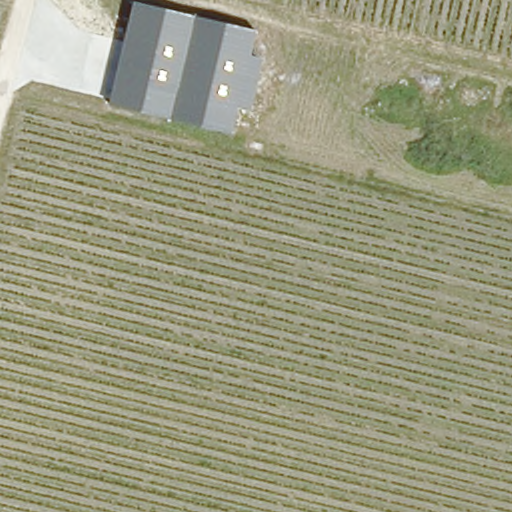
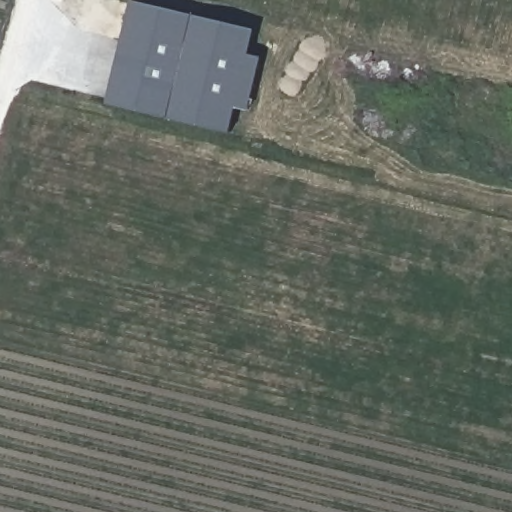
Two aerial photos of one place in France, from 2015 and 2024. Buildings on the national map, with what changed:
unchanged [(250,110),(237,107),(230,133),(170,119),(107,106),(132,1),(194,16),(256,31),(250,55),(263,58),(250,110)]

